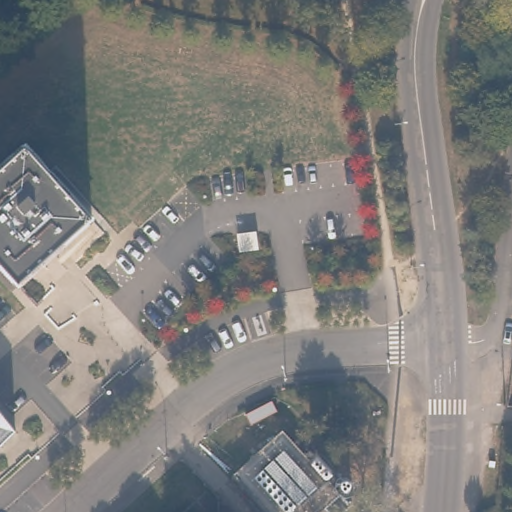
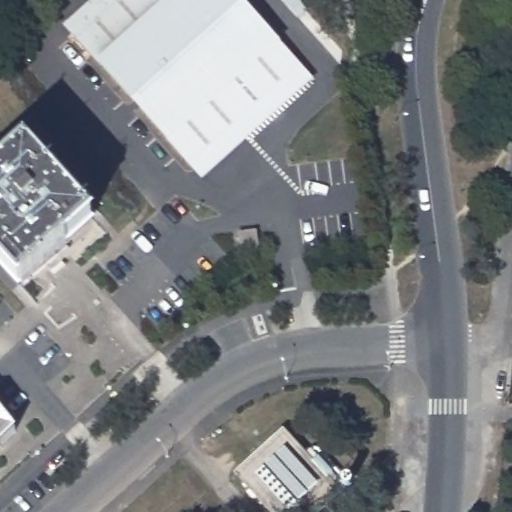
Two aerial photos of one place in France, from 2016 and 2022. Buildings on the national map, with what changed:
new [(282,44),(314,80),(202,180),(169,144),(97,63),(63,26),(91,0),(243,0),(282,44)]
unchanged [(20,280),(0,258),(0,168),(27,144),(91,217),(20,280)]
unchanged [(0,427),(0,425),(1,427),(0,427)]
unchanged [(313,463),(319,457),(334,473),(328,479),(341,493),(321,512),(271,512),(236,475),(283,432),(313,463)]

